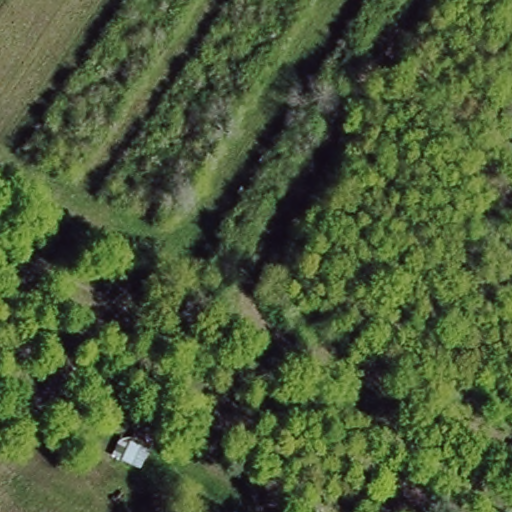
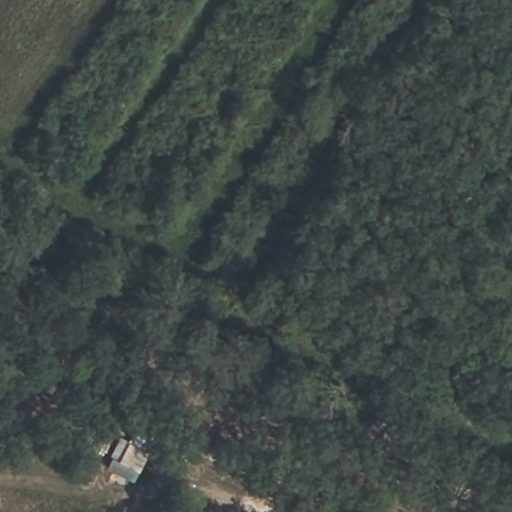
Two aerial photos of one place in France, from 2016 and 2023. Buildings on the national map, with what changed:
unchanged [(118,458),(138,429),(161,440),(141,472),(118,458)]

